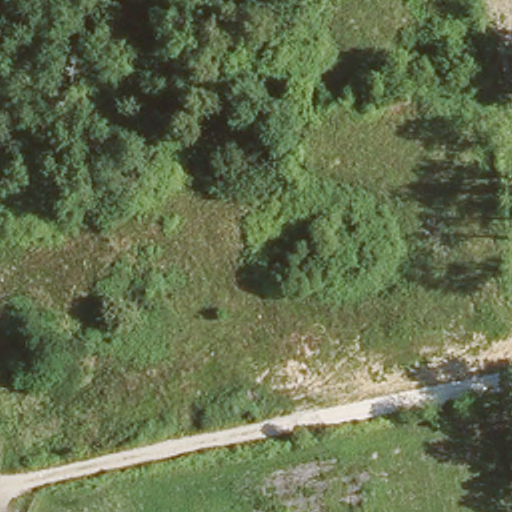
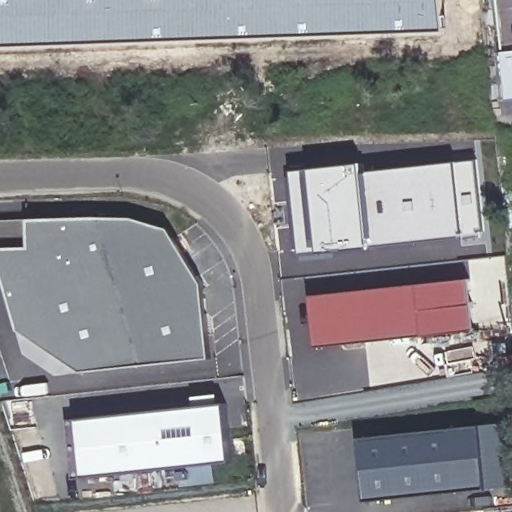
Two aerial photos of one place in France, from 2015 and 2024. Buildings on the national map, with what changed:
new [(0,0),(440,0),(444,31),(0,47),(0,0)]
new [(499,0),(512,0),(512,99),(509,99),(499,0)]
new [(293,172),(364,164),(365,173),(477,161),(484,235),(303,255),(293,172)]
new [(0,260),(0,221),(30,220),(136,219),(169,228),(203,283),(212,358),(84,373),(59,375),(27,353),(19,329),(0,260)]
new [(469,277),(474,330),(313,343),(309,293),(469,277)]
new [(194,408),(194,397),(219,394),(220,404),(227,404),(233,461),(84,476),(74,478),(69,421),(79,420),(194,408)]
new [(360,440),(481,427),(504,425),(511,485),(488,488),(368,501),(360,440)]

